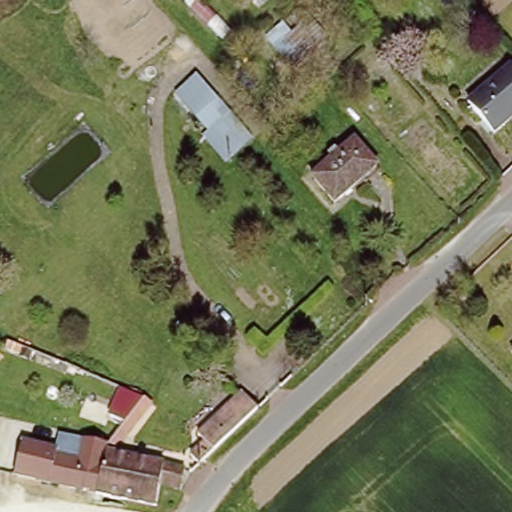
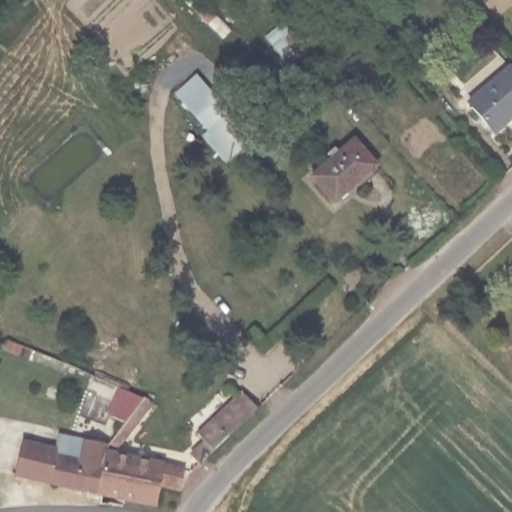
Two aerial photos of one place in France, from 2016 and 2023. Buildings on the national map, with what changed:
unchanged [(276,49),(309,19),(323,35),(291,64),(276,49)]
unchanged [(510,66),(512,68),(512,116),(497,130),(471,101),(510,66)]
unchanged [(174,93),(196,74),(229,112),(253,139),(225,163),(201,136),(208,131),(174,93)]
unchanged [(312,171),(353,133),(376,158),(335,196),(312,171)]
unchanged [(199,427),(203,423),(239,388),(253,402),(222,432),(213,441),(199,427)]
unchanged [(13,468),(22,436),(53,444),(54,438),(76,444),(79,433),(105,440),(103,449),(91,488),(13,468)]
unchanged [(183,471),(178,492),(157,486),(152,504),(93,489),(91,488),(103,449),(183,471)]

